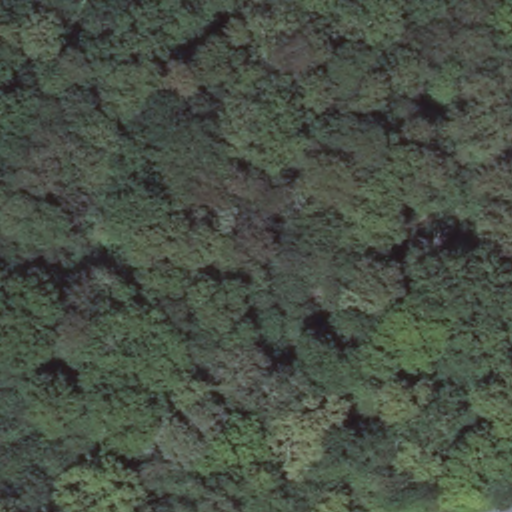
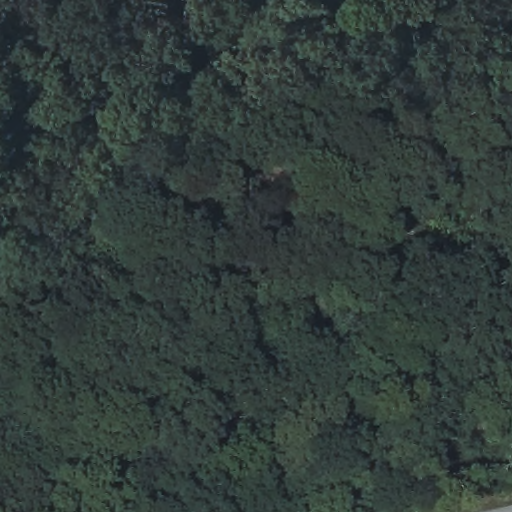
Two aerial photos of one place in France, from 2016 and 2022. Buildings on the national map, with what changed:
[]

